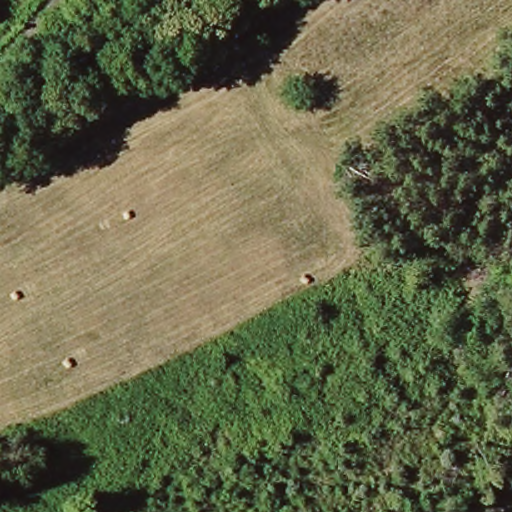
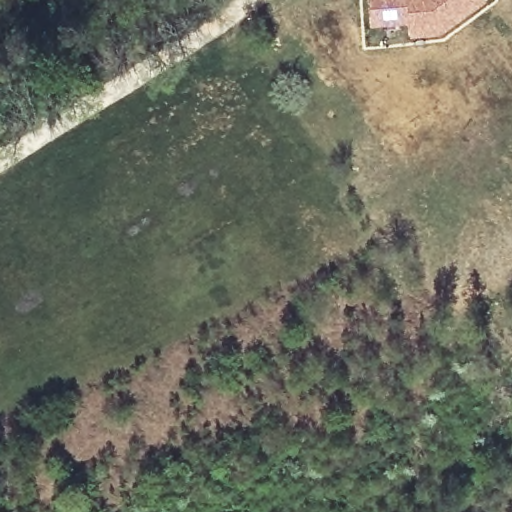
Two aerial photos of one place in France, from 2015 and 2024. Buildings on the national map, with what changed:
new [(440,36),(407,38),(406,25),(367,28),(366,0),(485,0),(440,36)]

